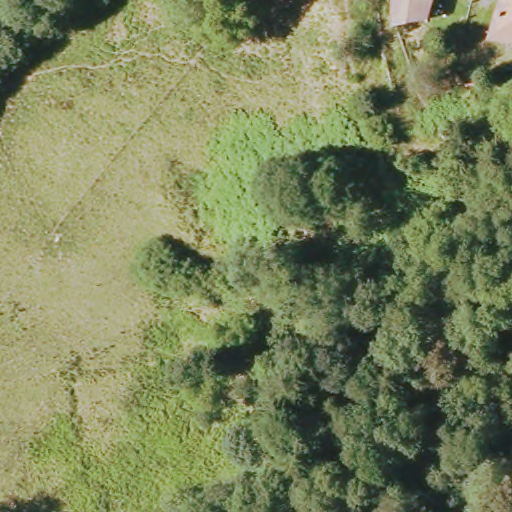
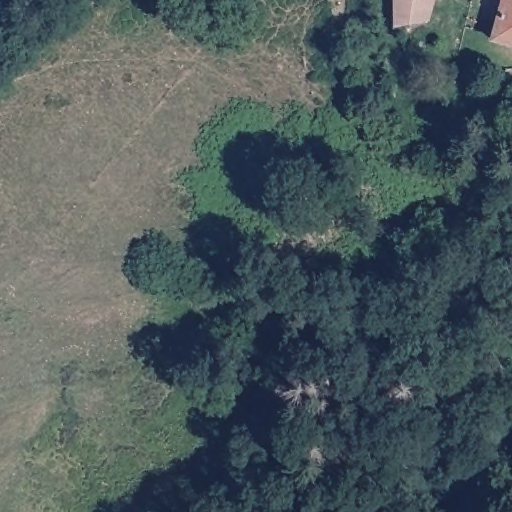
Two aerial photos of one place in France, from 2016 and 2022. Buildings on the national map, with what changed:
unchanged [(395,0),(433,0),(430,21),(396,24),(395,4),(395,0)]
unchanged [(492,40),(504,0),(512,0),(512,45),(492,40)]

